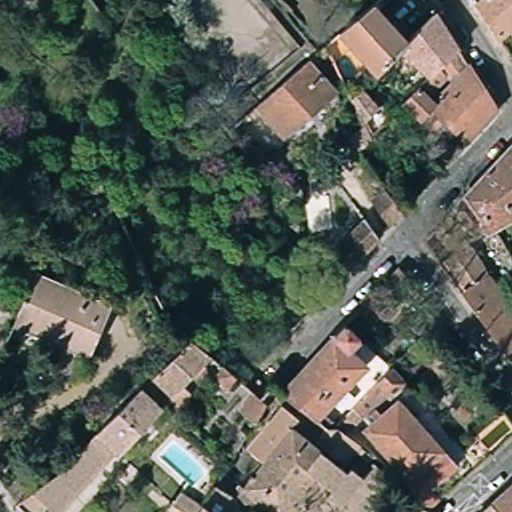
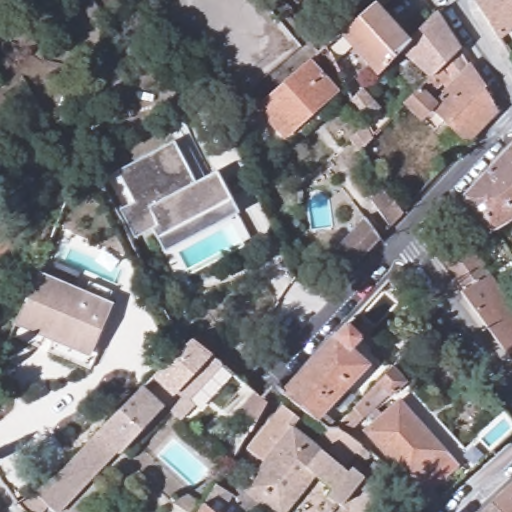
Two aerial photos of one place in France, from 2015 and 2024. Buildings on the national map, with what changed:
unchanged [(474,5),(480,0),(512,0),(512,27),(496,40),(474,5)]
unchanged [(373,6),(401,41),(398,45),(369,75),(339,36),(373,6)]
unchanged [(444,30),(404,71),(399,62),(400,56),(405,53),(398,45),(401,41),(432,10),(444,30)]
unchanged [(457,51),(425,82),(417,71),(411,75),(406,74),(404,71),(444,30),(457,51)]
unchanged [(410,119),(399,107),(425,82),(457,51),(494,111),(463,144),(436,119),(423,130),(410,119)]
unchanged [(318,65),(311,72),(333,96),(282,141),(255,111),(307,65),(313,60),(318,65)]
unchanged [(385,120),(369,136),(367,131),(365,127),(360,116),(349,95),(360,84),(373,102),(385,120)]
unchanged [(347,145),(362,130),(366,140),(353,151),(347,145)]
new [(194,185),(215,174),(236,215),(164,252),(152,230),(135,240),(120,210),(134,204),(117,171),(172,143),(194,185)]
unchanged [(471,236),(465,242),(445,217),(512,146),(512,227),(479,246),(471,236)]
unchanged [(370,181),(378,175),(387,185),(379,192),(370,181)]
unchanged [(353,268),(333,249),(360,222),(379,240),(353,268)]
unchanged [(465,242),(493,286),(512,314),(512,369),(438,267),(465,242)]
unchanged [(393,292),(384,282),(397,268),(406,281),(393,292)]
unchanged [(107,308),(85,354),(12,318),(35,272),(107,308)]
unchanged [(322,421),(280,391),(343,322),(349,315),(359,325),(352,332),(390,369),(392,367),(404,381),(475,460),(460,475),(395,402),(389,393),(386,390),(362,416),(348,431),(356,440),(338,461),(310,438),(322,421)]
unchanged [(435,323),(445,337),(438,342),(429,330),(435,323)]
unchanged [(151,390),(142,381),(150,374),(188,336),(210,355),(169,394),(163,401),(151,390)]
unchanged [(232,374),(222,385),(208,372),(217,361),(232,374)]
unchanged [(12,475),(25,490),(54,471),(139,385),(159,405),(102,460),(100,457),(51,509),(41,500),(29,512),(19,512),(9,501),(0,490),(0,483),(12,475)]
unchanged [(266,403),(254,420),(239,406),(253,391),(259,396),(266,403)]
unchanged [(406,483),(362,433),(369,425),(364,418),(372,412),(378,418),(395,402),(460,475),(425,509),(402,486),(406,483)]
unchanged [(211,481),(219,469),(236,483),(256,458),(242,445),(276,403),(292,416),(286,424),(344,471),(352,476),(366,458),(380,469),(348,512),(332,512),(337,506),(319,493),(324,487),(308,474),(277,512),(266,512),(254,501),(247,510),(245,512),(236,512),(234,510),(232,512),(189,512),(211,481)]
unchanged [(512,484),(512,512),(490,512),(487,508),(512,484)]
unchanged [(490,512),(483,512),(487,508),(490,512)]

